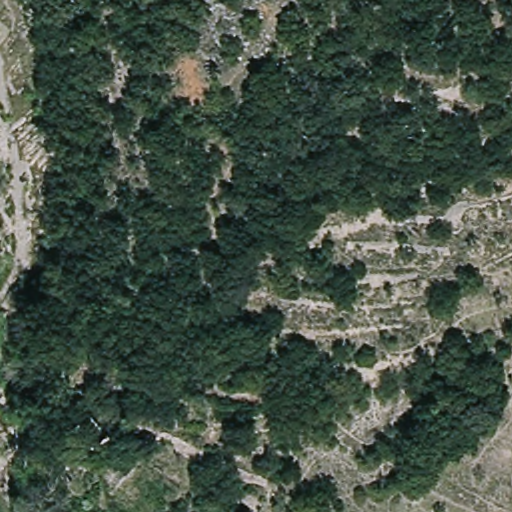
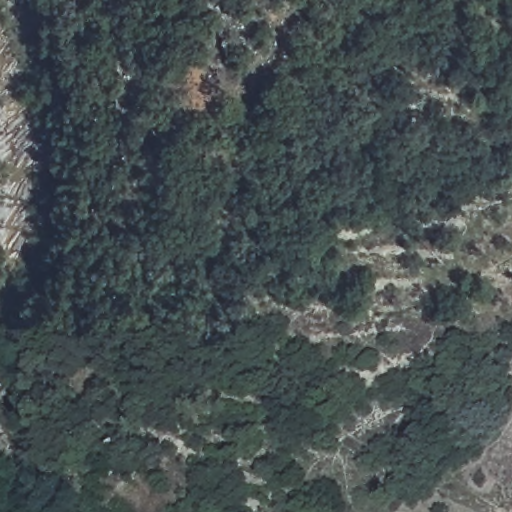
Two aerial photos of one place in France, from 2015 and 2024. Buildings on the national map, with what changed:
unchanged [(159,440),(153,450),(143,444),(149,435),(159,440)]

